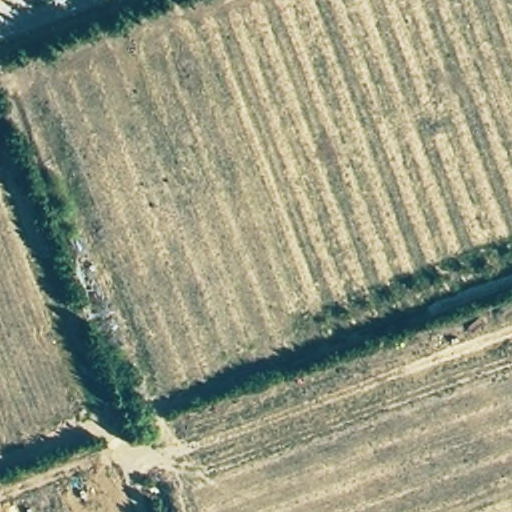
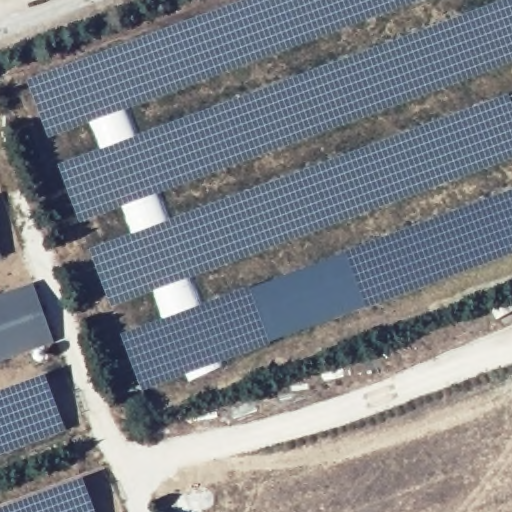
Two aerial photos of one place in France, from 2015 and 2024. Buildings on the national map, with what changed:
new [(245,0),(424,0),(50,140),(28,80),(245,0)]
new [(58,165),(504,0),(512,0),(512,63),(80,223),(58,165)]
new [(512,159),(112,308),(90,249),(512,93),(512,159)]
new [(122,334),(512,189),(512,254),(142,391),(122,334)]
demolished [(128,512),(0,512),(0,197),(128,512)]
new [(2,258),(0,259),(0,254),(2,258)]
new [(0,362),(0,294),(32,283),(55,343),(0,362)]
new [(45,374),(65,431),(0,455),(0,390),(45,374)]
new [(95,512),(0,512),(0,508),(82,477),(95,512)]

